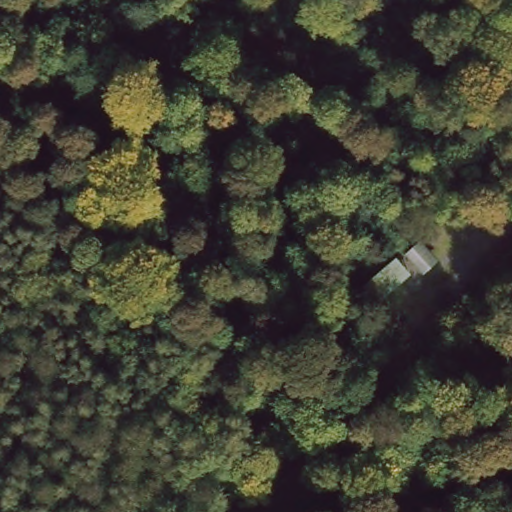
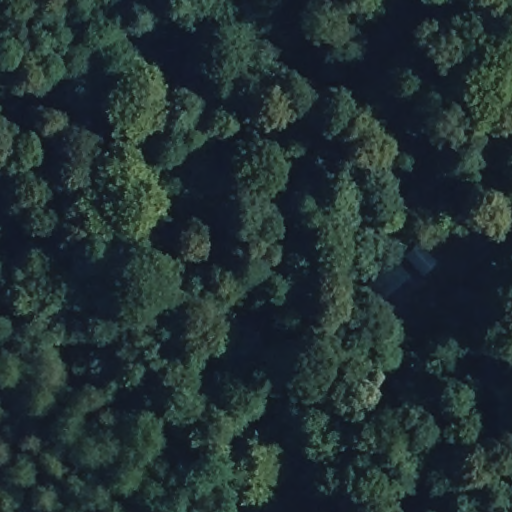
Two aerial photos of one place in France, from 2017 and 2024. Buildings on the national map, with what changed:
unchanged [(441,262),(423,278),(399,256),(418,238),(441,262)]

